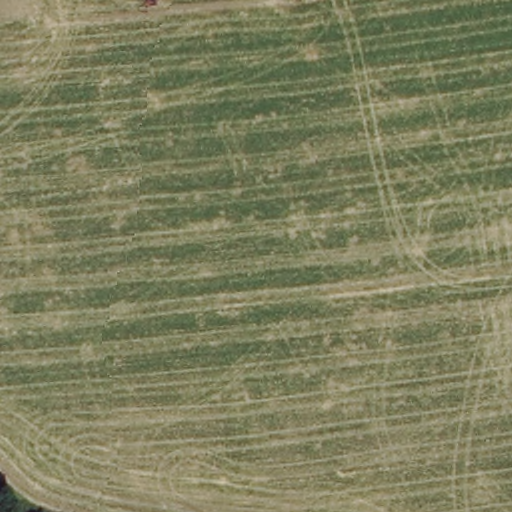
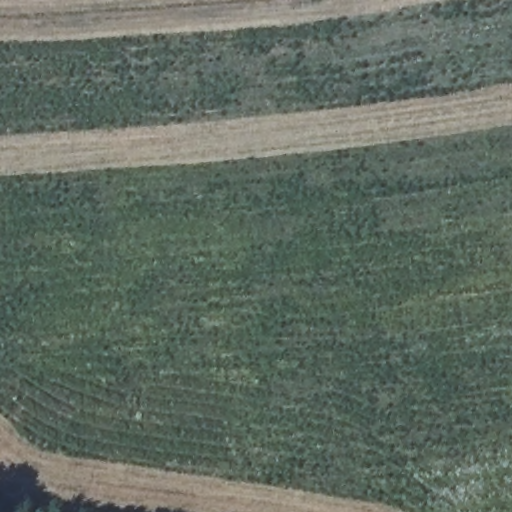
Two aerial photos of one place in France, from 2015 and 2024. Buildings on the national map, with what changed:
[]

